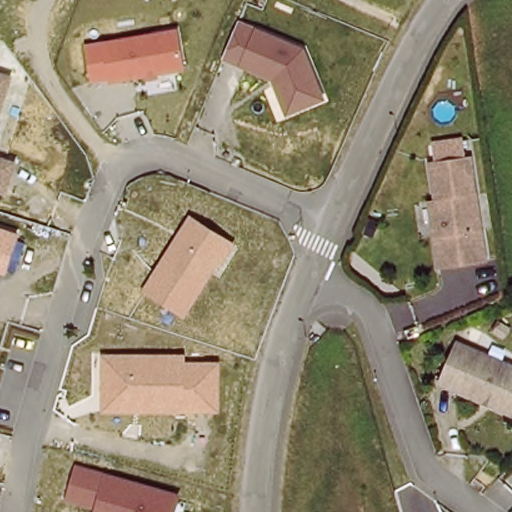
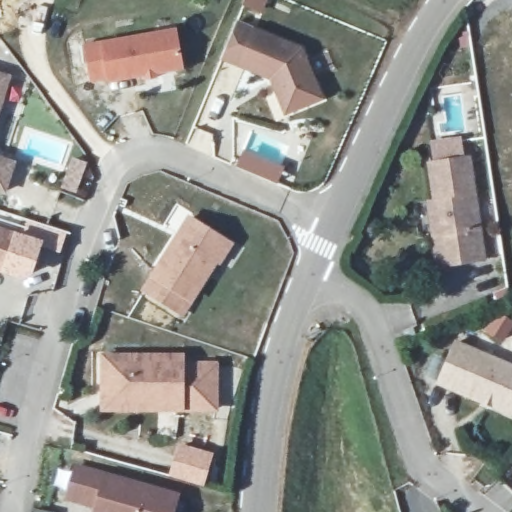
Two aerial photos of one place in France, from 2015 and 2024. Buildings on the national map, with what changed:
unchanged [(84,47),(180,29),(185,71),(107,84),(106,81),(92,84),(84,47)]
unchanged [(270,81),(239,69),(255,30),(305,49),(323,102),(287,116),(270,81)]
unchanged [(14,75),(0,120),(0,72),(14,75)]
unchanged [(0,194),(0,158),(17,162),(5,195),(0,194)]
unchanged [(435,201),(430,165),(468,159),(482,262),(437,268),(434,238),(429,202),(435,201)]
unchanged [(141,293),(150,277),(190,214),(235,243),(191,307),(184,318),(141,293)]
unchanged [(0,272),(0,227),(23,234),(8,275),(0,272)]
unchanged [(512,374),(512,420),(511,419),(510,421),(490,413),(492,408),(484,404),(482,409),(437,390),(454,349),(512,374)]
unchanged [(101,412),(102,355),(185,355),(185,365),(218,364),(218,412),(101,412)]
new [(184,441),(215,450),(206,480),(175,471),(184,441)]
unchanged [(65,501),(75,463),(180,493),(175,512),(94,512),(95,510),(65,501)]

